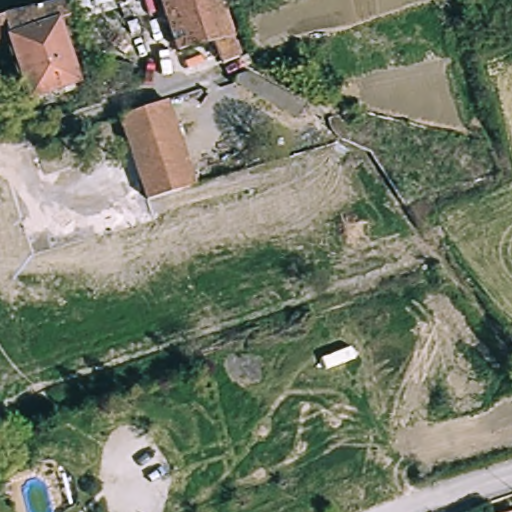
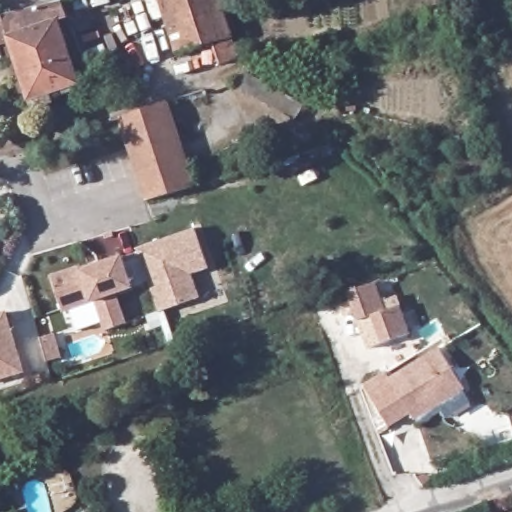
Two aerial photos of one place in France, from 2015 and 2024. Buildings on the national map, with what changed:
unchanged [(239,53),(218,59),(213,43),(178,54),(171,35),(159,0),(223,0),(239,53)]
unchanged [(57,24),(76,83),(29,99),(9,40),(0,43),(0,17),(63,3),(69,21),(57,24)]
unchanged [(299,121),(231,81),(250,74),(308,107),(299,121)]
unchanged [(164,102),(191,184),(145,199),(117,118),(164,102)]
new [(194,228),(208,268),(189,275),(197,299),(158,312),(136,249),(194,228)]
new [(105,330),(96,301),(92,302),(63,312),(51,274),(84,262),(86,266),(124,253),(135,288),(118,294),(128,321),(105,330)]
new [(347,291),(373,281),(384,309),(398,304),(408,330),(382,340),(371,312),(357,317),(347,291)]
new [(95,303),(101,322),(76,330),(70,311),(95,303)]
unchanged [(22,373),(0,380),(0,314),(4,313),(22,373)]
new [(42,348),(40,343),(54,338),(57,348),(60,358),(46,362),(42,348)]
new [(389,375),(393,381),(443,350),(467,391),(417,422),(413,416),(391,430),(367,389),(389,375)]

